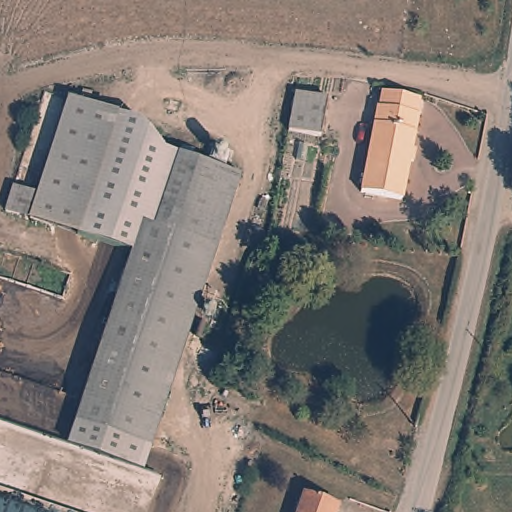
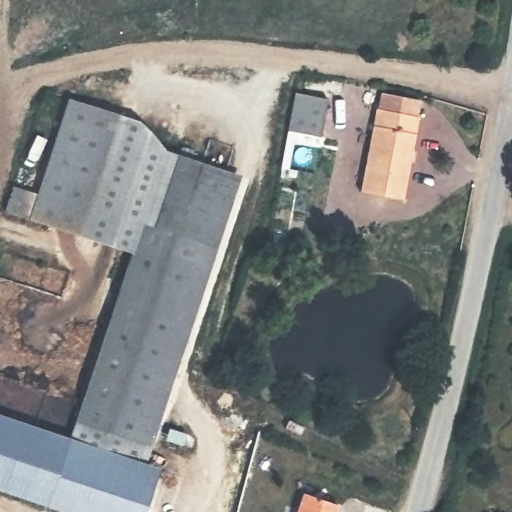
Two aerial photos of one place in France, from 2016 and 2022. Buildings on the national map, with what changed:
unchanged [(320,137),(288,131),(295,93),(327,99),(320,137)]
unchanged [(397,205),(355,197),(371,113),(373,113),(376,98),(414,105),(411,121),(412,121),(397,205)]
unchanged [(142,473),(68,449),(99,350),(122,283),(132,253),(28,219),(17,215),(19,189),(37,195),(67,99),(139,122),(163,151),(177,156),(180,147),(193,151),(190,160),(203,164),(209,158),(212,147),(229,152),(225,164),(225,171),(240,177),(142,473)]
new [(142,473),(145,463),(157,467),(144,512),(64,512),(0,491),(0,415),(71,439),(68,449),(142,473)]
unchanged [(297,512),(303,494),(338,506),(336,512),(297,512)]

